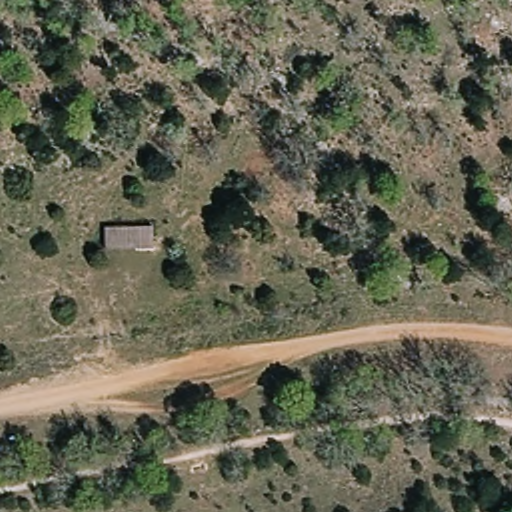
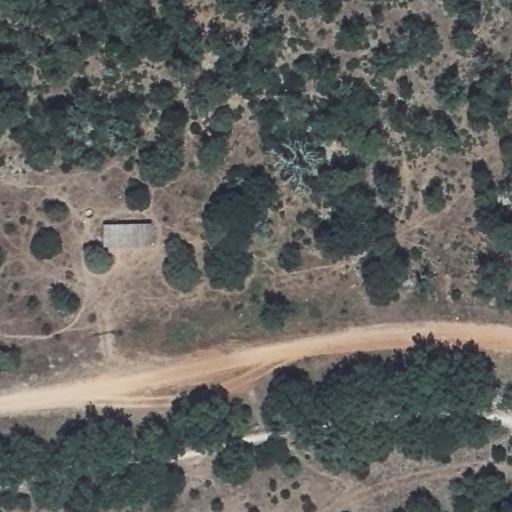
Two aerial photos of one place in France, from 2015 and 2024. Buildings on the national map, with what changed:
unchanged [(153,222),(154,245),(103,247),(105,224),(153,222)]

